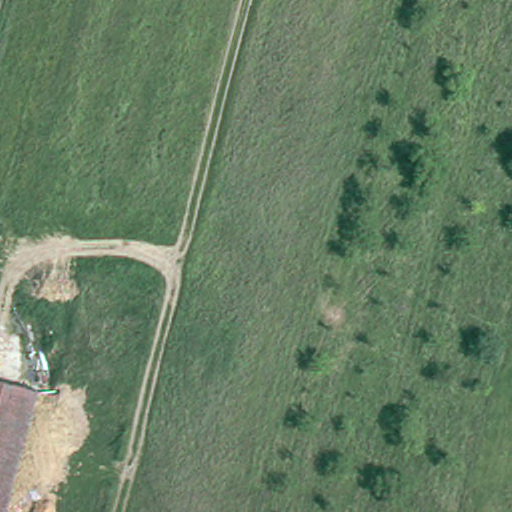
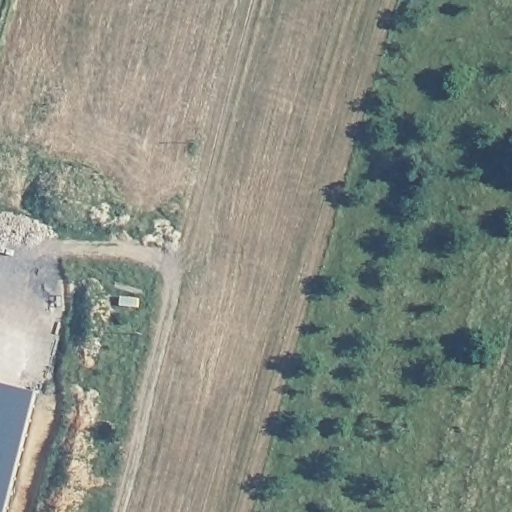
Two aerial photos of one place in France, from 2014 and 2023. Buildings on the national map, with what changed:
unchanged [(38,390),(7,512),(0,512),(0,381),(4,382),(38,390)]

